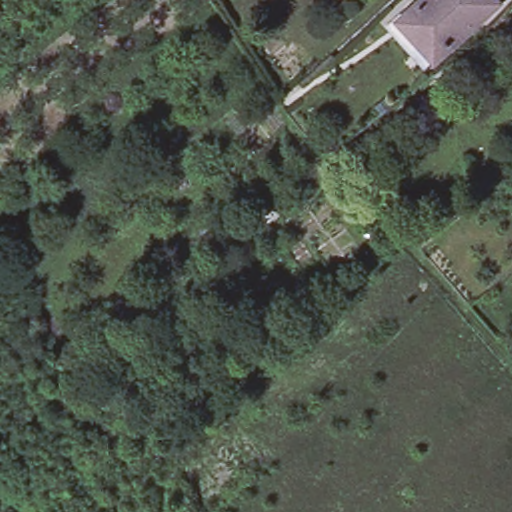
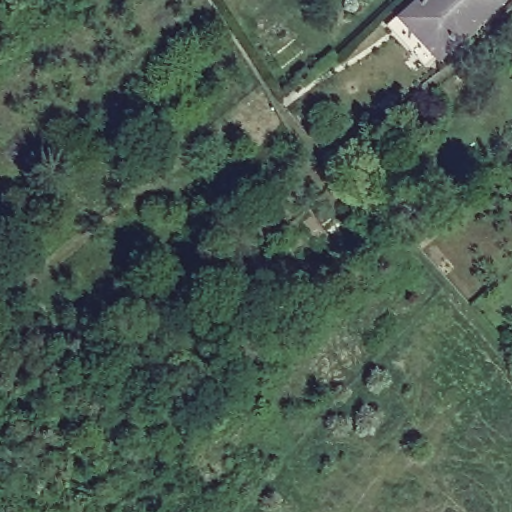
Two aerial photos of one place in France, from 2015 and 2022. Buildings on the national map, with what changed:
unchanged [(502,0),(441,54),(431,64),(392,21),(415,0),(417,0),(419,2),(420,0),(502,0)]
unchanged [(284,135),(291,143),(284,150),(276,142),(284,135)]
unchanged [(185,168),(171,181),(165,174),(179,161),(185,168)]
unchanged [(124,404),(149,433),(137,444),(126,432),(116,440),(101,424),(124,404)]

